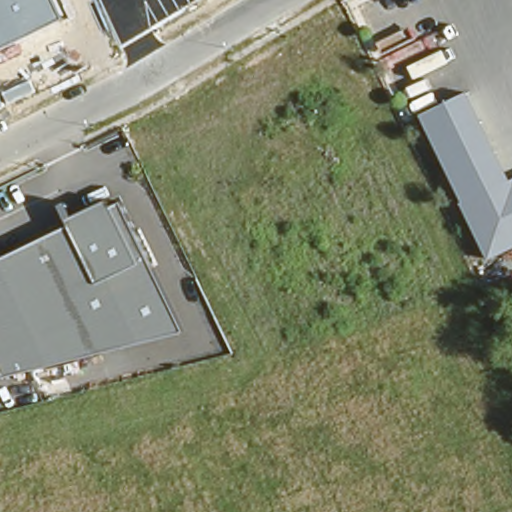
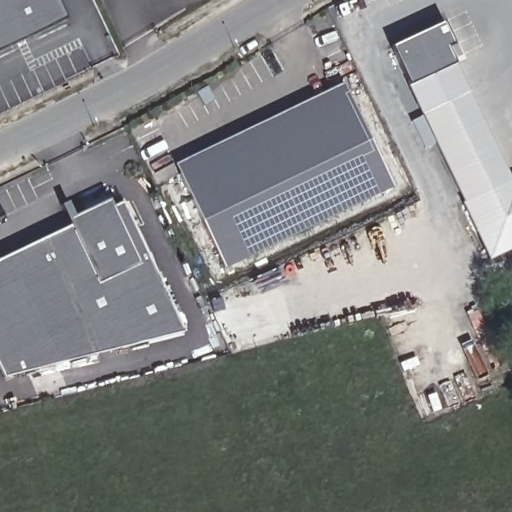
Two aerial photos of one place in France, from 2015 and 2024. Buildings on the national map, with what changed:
unchanged [(0,51),(0,0),(57,0),(66,19),(0,51)]
new [(421,115),(409,87),(391,49),(443,23),(452,43),(447,45),(456,64),(470,93),(421,115)]
new [(343,84),(392,189),(225,269),(175,165),(343,84)]
unchanged [(470,93),(511,180),(512,180),(512,250),(489,261),(421,115),(470,93)]
unchanged [(4,379),(0,369),(0,261),(73,227),(69,220),(108,201),(111,209),(123,203),(185,332),(4,379)]

